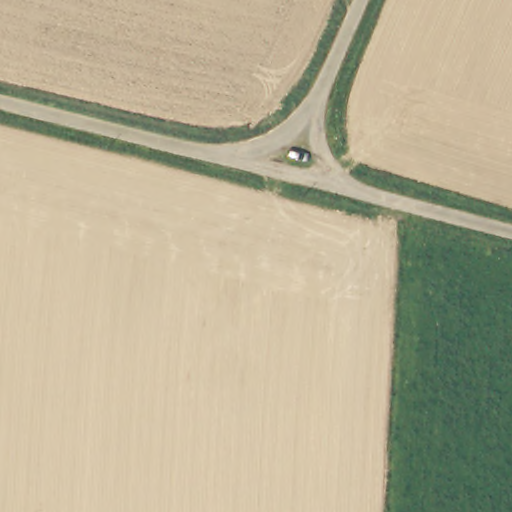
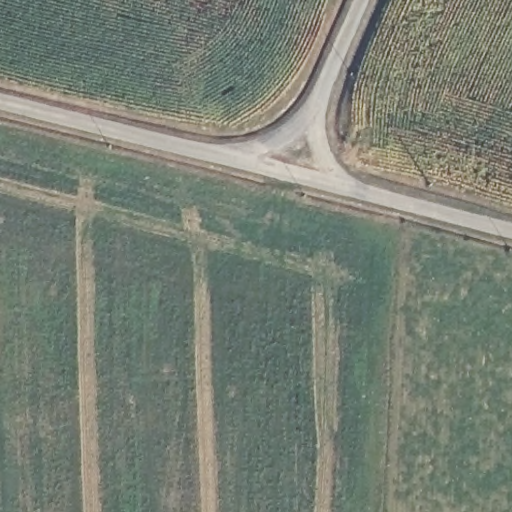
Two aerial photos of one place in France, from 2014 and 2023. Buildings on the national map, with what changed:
[]

